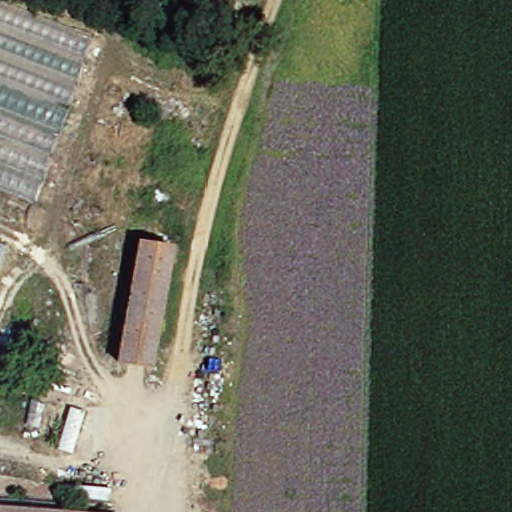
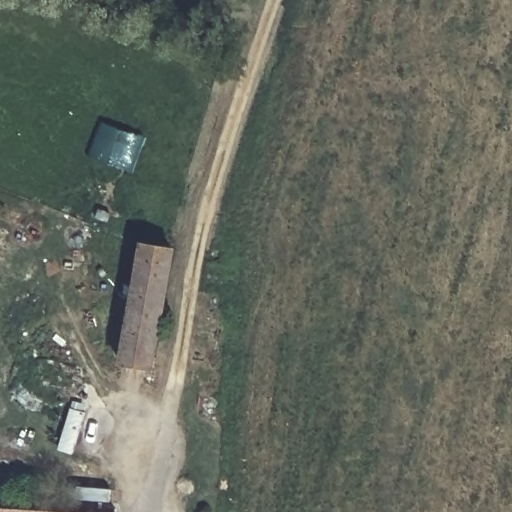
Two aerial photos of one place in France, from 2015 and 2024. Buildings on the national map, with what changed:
demolished [(0,216),(0,0),(90,35),(21,223),(0,216)]
unchanged [(116,363),(131,266),(134,247),(163,251),(159,271),(144,367),(116,363)]
unchanged [(91,504),(90,512),(64,512),(65,501),(91,504)]

